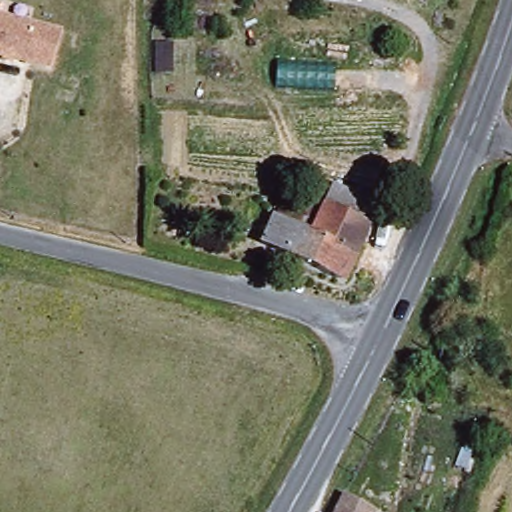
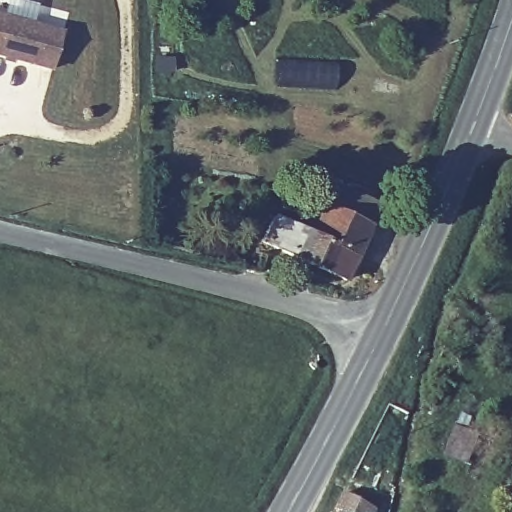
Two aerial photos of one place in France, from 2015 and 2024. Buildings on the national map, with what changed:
unchanged [(68,32),(58,69),(0,53),(0,13),(68,32)]
unchanged [(379,204),(343,280),(264,240),(275,217),(300,229),(310,208),(320,213),(335,181),(379,204)]
unchanged [(374,512),(331,512),(339,496),(374,512)]

